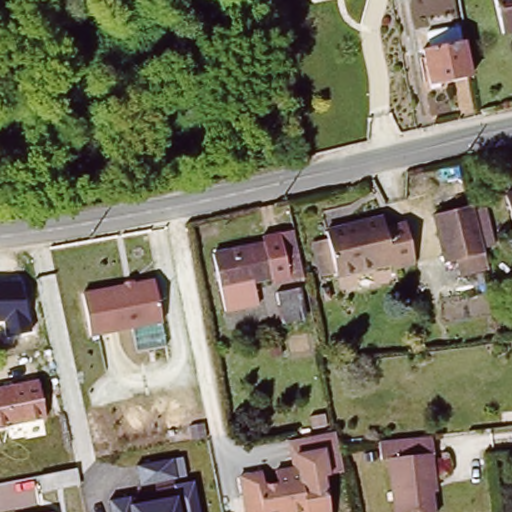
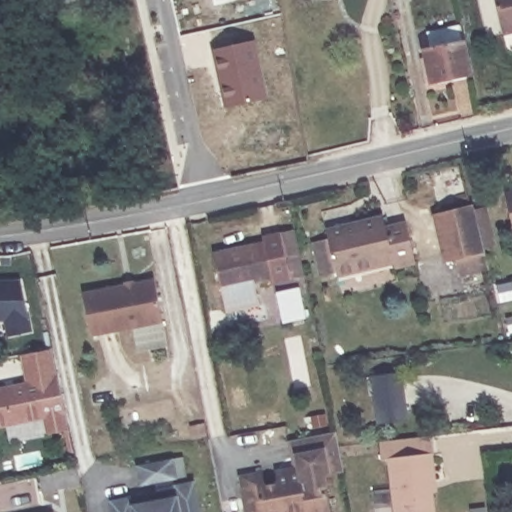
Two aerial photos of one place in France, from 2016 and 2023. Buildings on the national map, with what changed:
unchanged [(508,39),(498,0),(512,0),(512,38),(508,39)]
new [(253,40),(266,99),(225,108),(213,50),(253,40)]
unchanged [(470,77),(430,86),(421,52),(463,44),(470,77)]
unchanged [(512,195),(512,224),(505,196),(512,195)]
unchanged [(458,280),(454,265),(444,267),(433,219),(472,208),(472,211),(480,209),(489,249),(481,250),(483,258),(487,273),(458,280)]
unchanged [(310,240),(326,236),(325,230),(381,215),(385,228),(406,222),(417,263),(393,269),(391,262),(337,277),(335,266),(317,270),(310,240)]
unchanged [(294,228),(305,275),(275,282),(273,277),(265,242),(264,234),(294,228)]
unchanged [(273,277),(248,282),(251,297),(220,305),(216,289),(225,287),(217,252),(265,242),(273,277)]
unchanged [(33,331),(8,340),(4,322),(0,322),(0,278),(21,278),(33,331)]
unchanged [(154,278),(162,322),(90,335),(82,291),(154,278)]
unchanged [(301,323),(283,327),(276,296),(295,293),(301,323)]
new [(379,425),(377,410),(373,377),(403,373),(407,406),(410,420),(379,425)]
unchanged [(47,420),(0,430),(0,387),(39,378),(47,420)]
unchanged [(256,496),(276,493),(271,470),(295,465),(297,472),(302,471),(296,440),(333,431),(335,445),(340,472),(320,475),(327,512),(303,512),(302,510),(293,512),(243,512),(240,498),(236,474),(252,471),(256,496)]
unchanged [(433,512),(394,512),(389,465),(381,465),(380,447),(432,440),(435,458),(431,459),(435,485),(435,495),(431,496),(433,512)]
unchanged [(135,463),(174,457),(178,481),(195,480),(201,512),(112,512),(110,500),(141,495),(135,463)]
unchanged [(82,484),(46,495),(41,480),(79,468),(82,484)]

